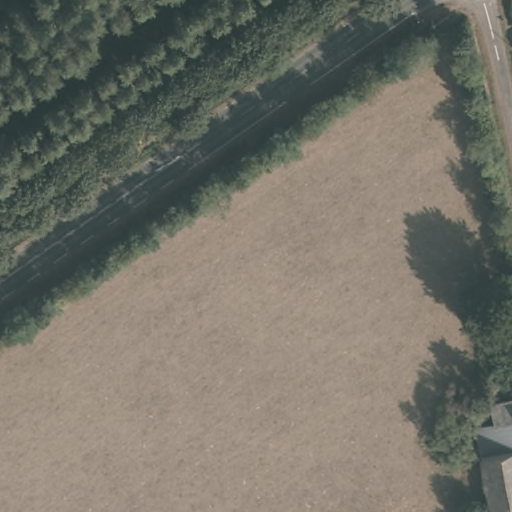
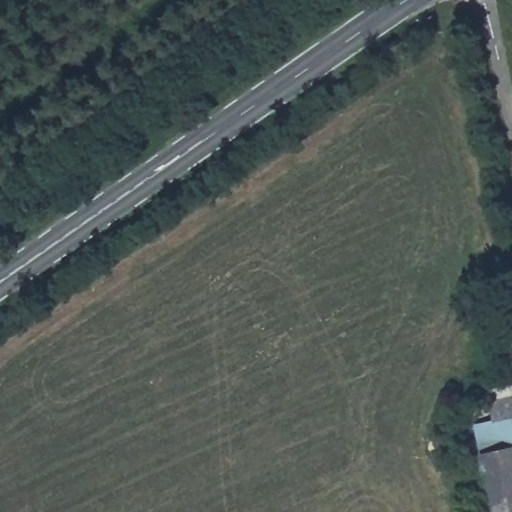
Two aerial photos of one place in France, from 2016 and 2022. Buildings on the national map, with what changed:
unchanged [(506,416),(512,443),(512,512),(492,512),(472,422),(493,418),(490,400),(512,394),(512,414),(506,416)]

